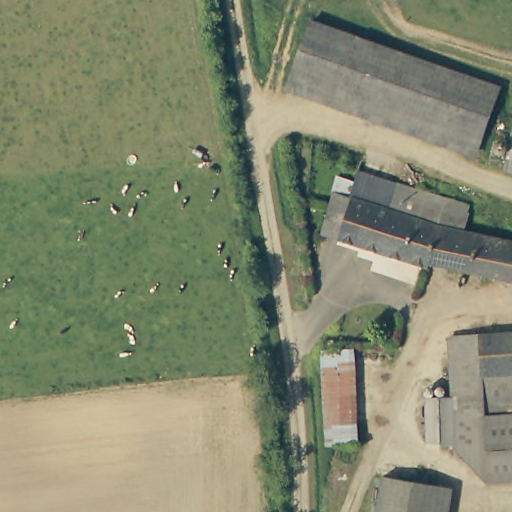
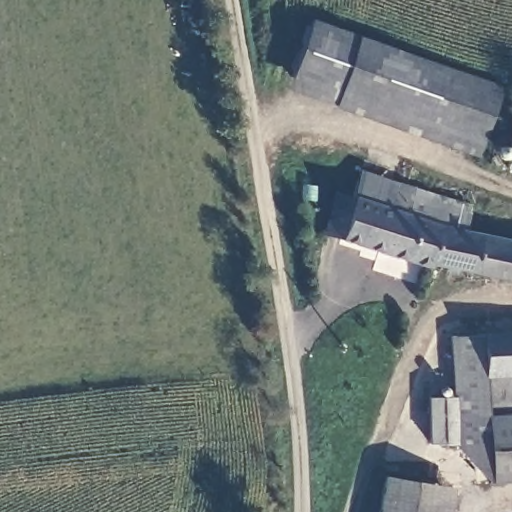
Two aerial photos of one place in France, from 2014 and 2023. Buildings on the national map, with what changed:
unchanged [(287,92),(304,34),(497,88),(481,146),(287,92)]
unchanged [(504,167),(512,133),(512,169),(504,167)]
unchanged [(429,262),(429,267),(373,248),(323,234),(339,175),(355,180),(362,158),(472,192),(463,230),(512,241),(512,280),(429,262)]
unchanged [(484,388),(482,336),(482,334),(512,332),(512,481),(489,482),(454,443),(452,395),(452,390),(484,388)]
unchanged [(482,334),(482,336),(484,388),(452,390),(449,336),(482,334)]
demolished [(324,349),(351,349),(354,444),(326,445),(324,349)]
unchanged [(452,395),(454,443),(428,443),(427,396),(452,395)]
unchanged [(383,476),(452,487),(447,512),(377,512),(383,476)]

